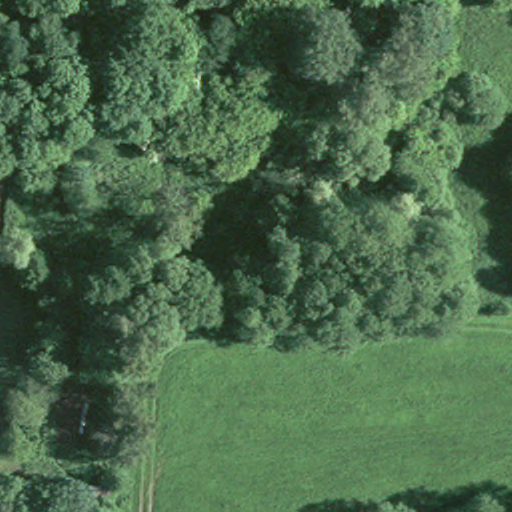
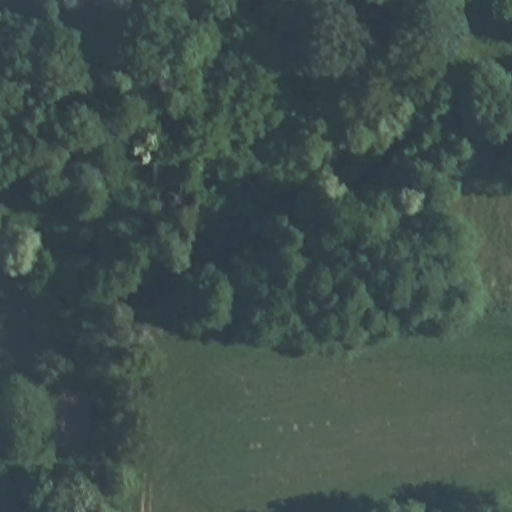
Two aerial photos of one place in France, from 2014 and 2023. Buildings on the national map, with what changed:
unchanged [(99,499),(117,500),(116,512),(99,512),(99,499)]

